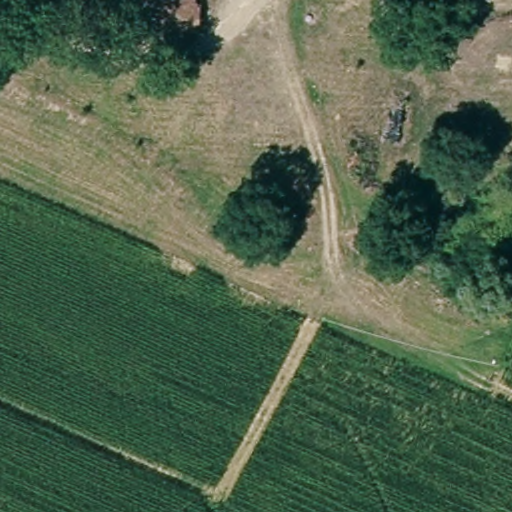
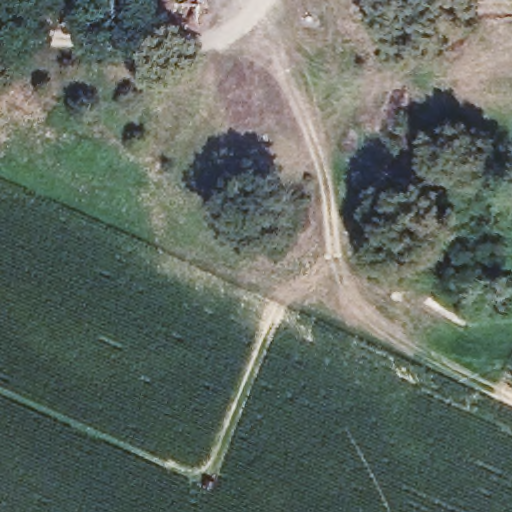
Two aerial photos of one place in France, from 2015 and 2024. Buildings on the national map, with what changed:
unchanged [(195,9),(195,32),(162,32),(162,0),(176,0),(176,9),(195,9)]

